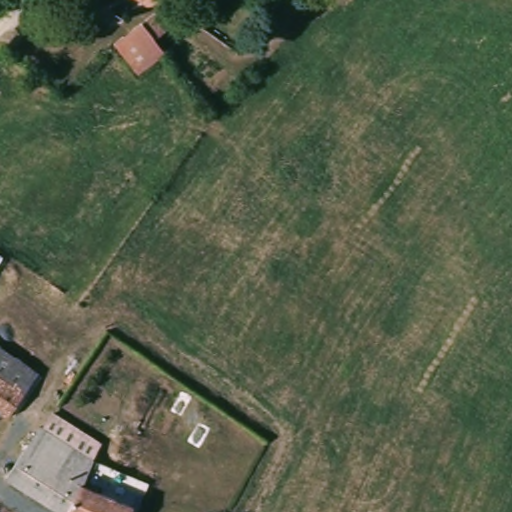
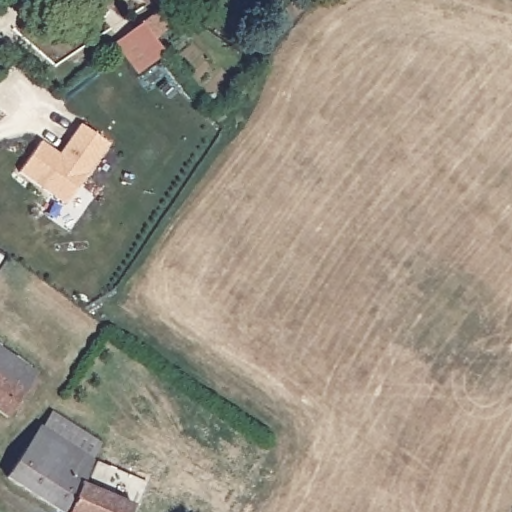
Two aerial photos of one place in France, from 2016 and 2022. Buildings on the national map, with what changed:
unchanged [(165,7),(144,6),(136,0),(159,0),(165,7)]
unchanged [(116,51),(122,44),(155,22),(163,22),(172,25),(178,30),(158,46),(170,61),(140,82),(116,51)]
new [(17,173),(39,142),(58,153),(79,124),(108,145),(65,206),(17,173)]
unchanged [(16,422),(0,412),(0,350),(42,374),(16,422)]
unchanged [(63,512),(9,476),(43,429),(44,430),(54,416),(101,449),(94,464),(82,490),(134,512),(63,512)]

